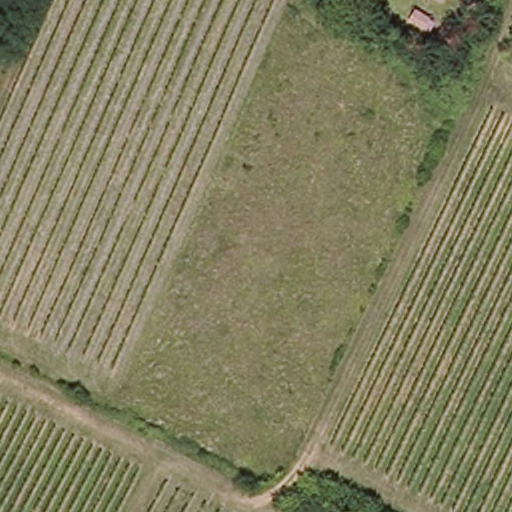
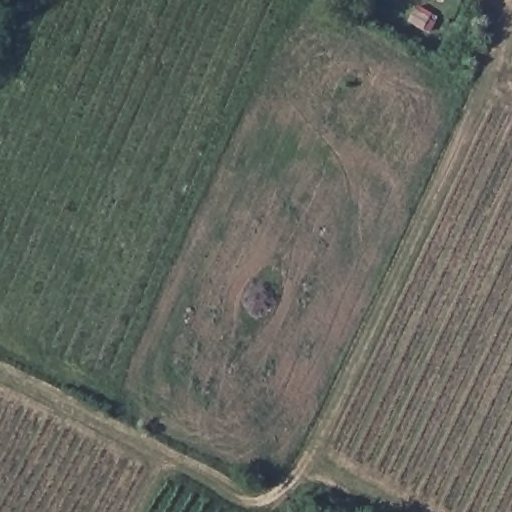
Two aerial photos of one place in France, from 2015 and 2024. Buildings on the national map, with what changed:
unchanged [(399,21),(405,12),(419,20),(413,30),(399,21)]

